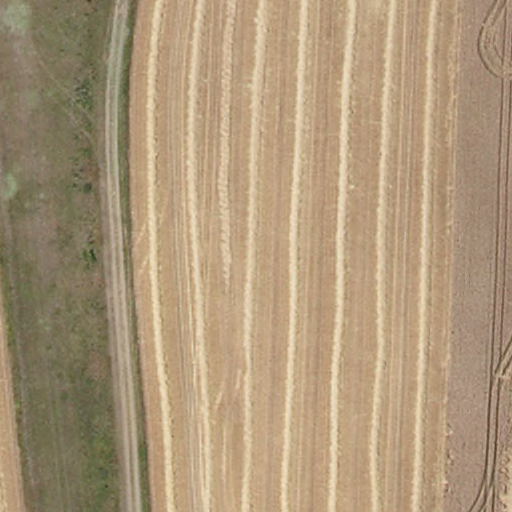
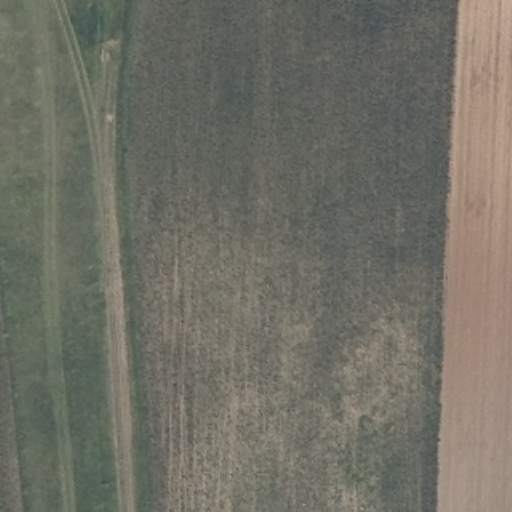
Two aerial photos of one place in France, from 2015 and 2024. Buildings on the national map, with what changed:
[]

